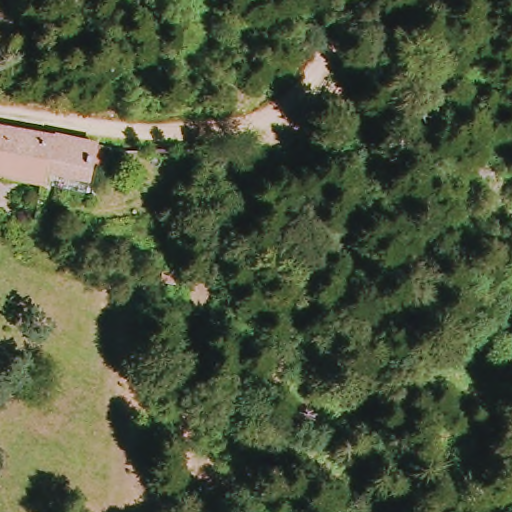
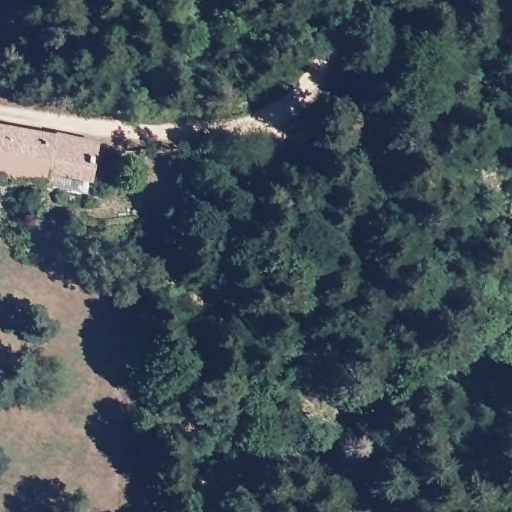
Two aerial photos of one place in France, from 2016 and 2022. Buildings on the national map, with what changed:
unchanged [(0,173),(0,124),(92,138),(90,151),(107,155),(102,168),(88,165),(84,174),(53,166),(49,182),(0,173)]

